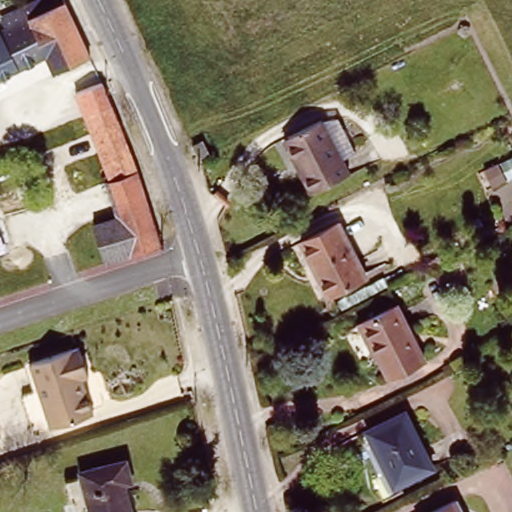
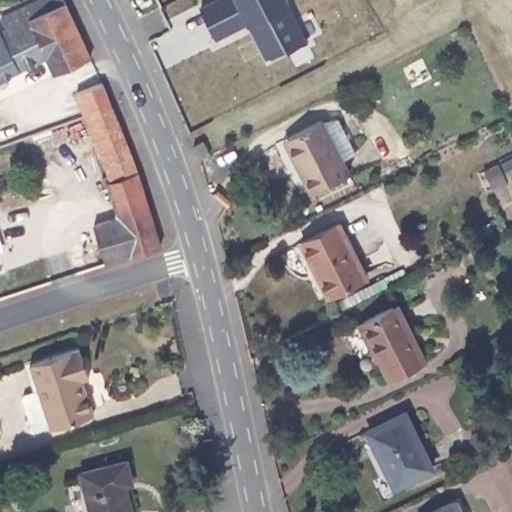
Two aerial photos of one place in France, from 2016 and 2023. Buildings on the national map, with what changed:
unchanged [(44,0),(67,0),(92,52),(95,57),(57,74),(50,56),(0,77),(0,33),(7,31),(2,19),(3,17),(44,0)]
new [(266,59),(249,24),(217,40),(200,7),(212,0),(289,0),(290,2),(306,40),(266,59)]
unchanged [(105,190),(100,191),(97,182),(107,179),(83,115),(82,109),(77,96),(105,86),(110,99),(112,103),(125,136),(154,221),(163,250),(132,260),(110,267),(97,230),(112,225),(118,223),(105,190)]
unchanged [(357,143),(343,150),(352,167),(310,189),(300,169),(283,136),(291,132),(320,116),(342,114),(357,143)]
new [(203,139),(210,152),(201,157),(194,144),(203,139)]
unchanged [(342,215),(368,270),(332,288),(305,234),(342,215)]
unchanged [(400,295),(432,357),(387,376),(352,322),(400,295)]
unchanged [(77,345),(85,373),(79,376),(90,412),(47,426),(27,360),(77,345)]
unchanged [(409,407),(427,465),(387,479),(368,420),(409,407)]
unchanged [(129,478),(122,481),(131,512),(90,512),(77,469),(122,457),(129,478)]
unchanged [(462,512),(426,512),(454,497),(462,512)]

